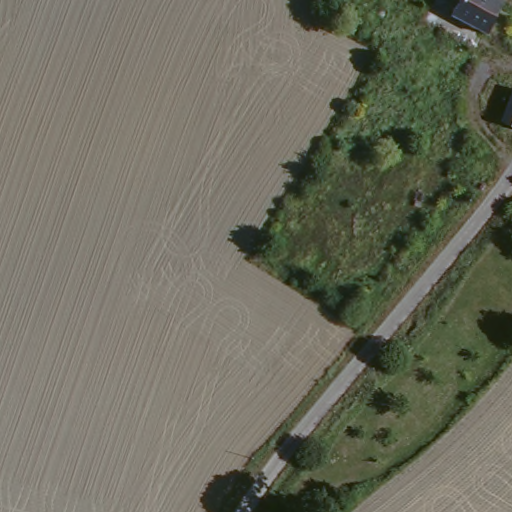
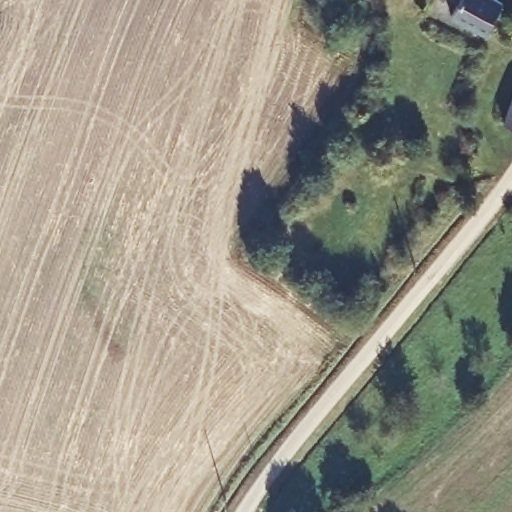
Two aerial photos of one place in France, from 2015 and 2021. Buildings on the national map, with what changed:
unchanged [(496,22),(495,25),(459,5),(461,0),(507,0),(496,22)]

